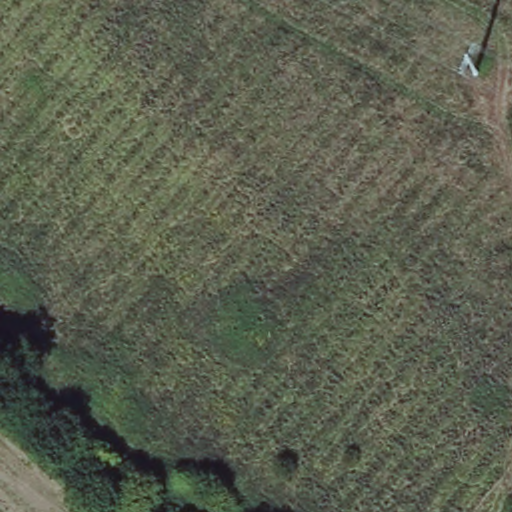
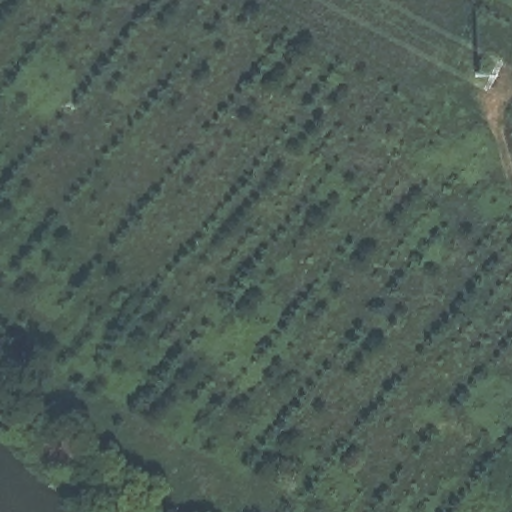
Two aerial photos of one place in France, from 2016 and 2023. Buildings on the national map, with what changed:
[]

